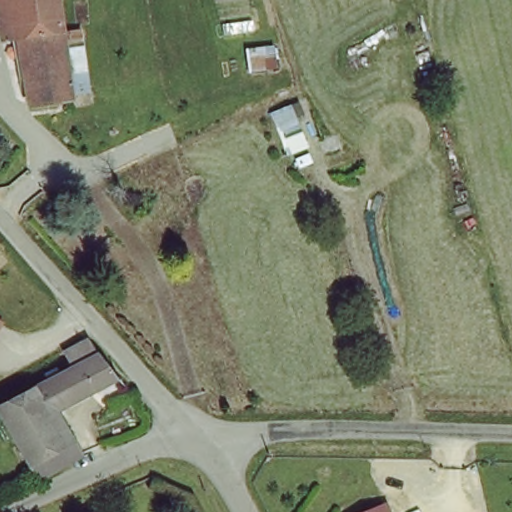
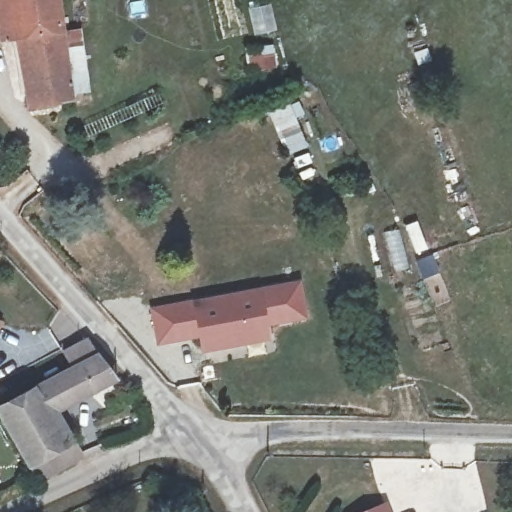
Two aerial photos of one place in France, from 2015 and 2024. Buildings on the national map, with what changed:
new [(0,0),(10,0),(13,17),(15,32),(0,34),(0,0)]
unchanged [(78,86),(79,99),(33,105),(23,31),(15,32),(10,0),(57,0),(70,87),(78,86)]
new [(268,113),(290,103),(299,124),(312,119),(320,141),(285,155),(268,113)]
new [(301,304),(304,318),(290,321),(264,326),(267,338),(203,351),(201,340),(160,348),(154,315),(298,287),(301,304)]
unchanged [(0,324),(0,323),(1,323),(0,324)]
unchanged [(120,378),(52,417),(59,430),(68,425),(88,456),(46,484),(0,411),(0,407),(45,382),(43,376),(95,347),(120,378)]
unchanged [(384,500),(388,512),(353,512),(384,500)]

